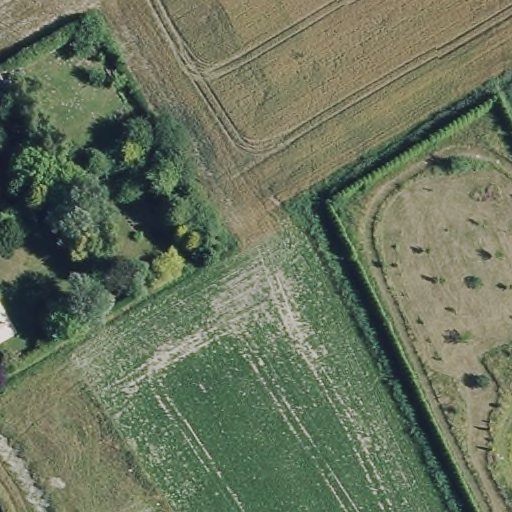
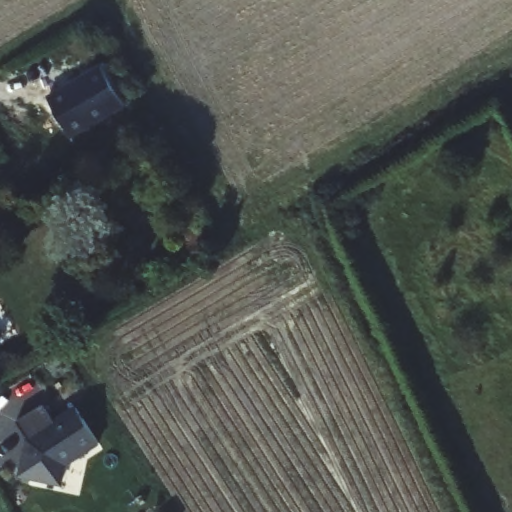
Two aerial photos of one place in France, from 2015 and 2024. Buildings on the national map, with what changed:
new [(127,107),(73,137),(47,95),(103,64),(127,107)]
new [(64,465),(58,486),(20,478),(25,440),(73,405),(98,446),(64,465)]

